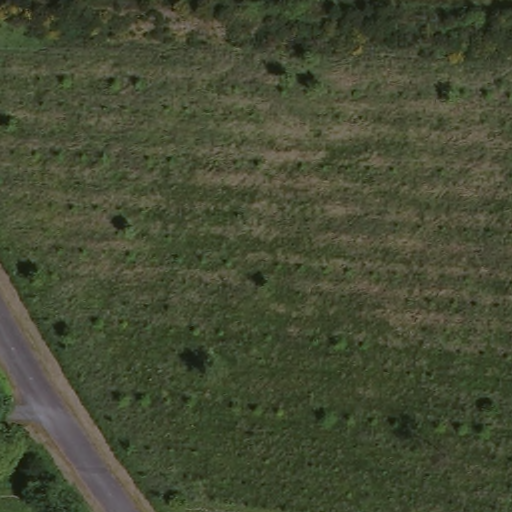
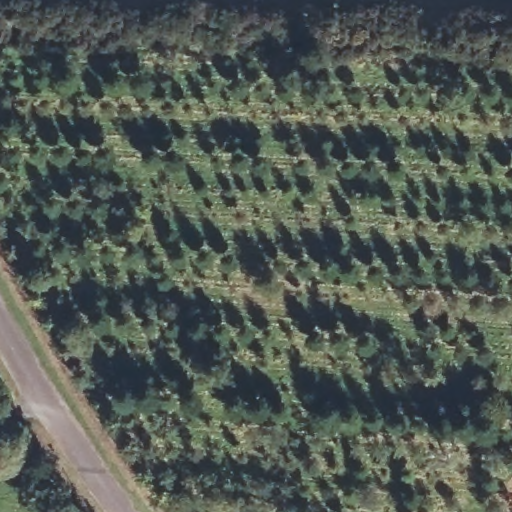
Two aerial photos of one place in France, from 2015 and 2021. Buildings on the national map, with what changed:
[]

